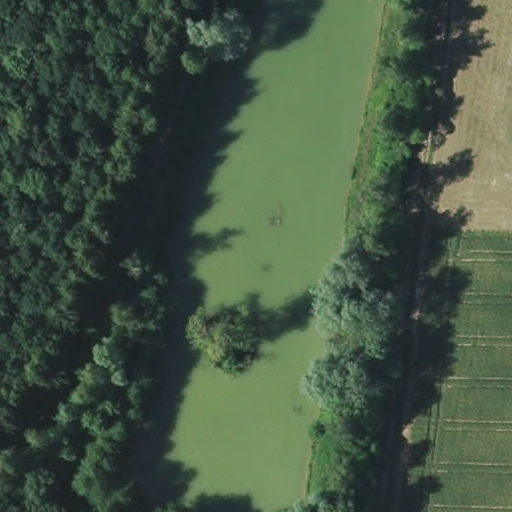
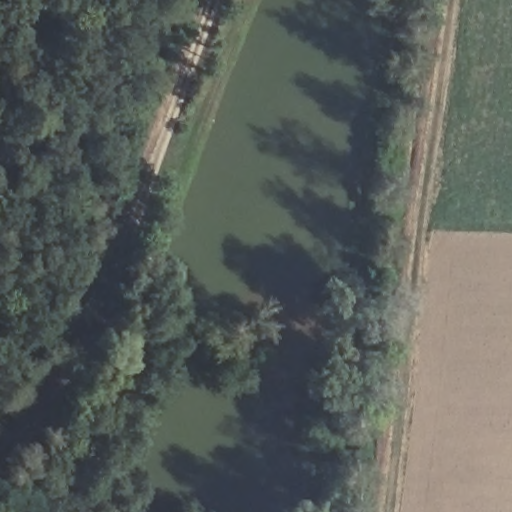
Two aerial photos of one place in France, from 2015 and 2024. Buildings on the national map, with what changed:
unchanged [(244,332),(244,352),(219,352),(223,332),(244,332)]

